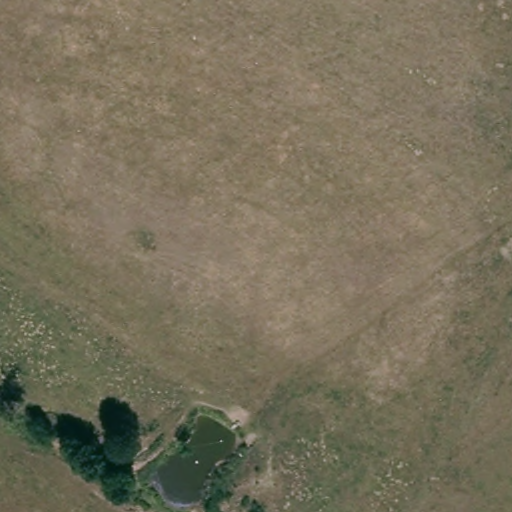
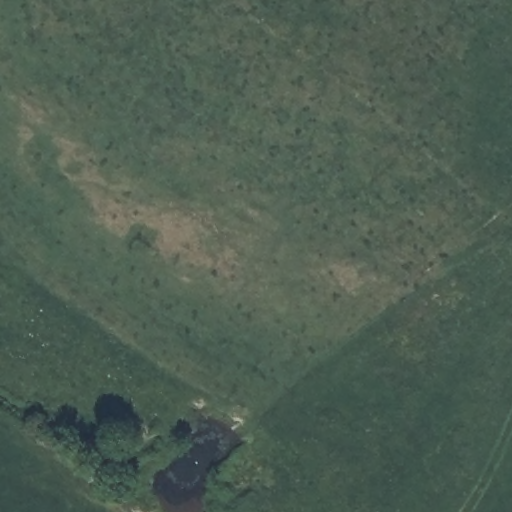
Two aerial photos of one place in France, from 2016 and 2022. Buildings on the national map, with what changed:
[]

